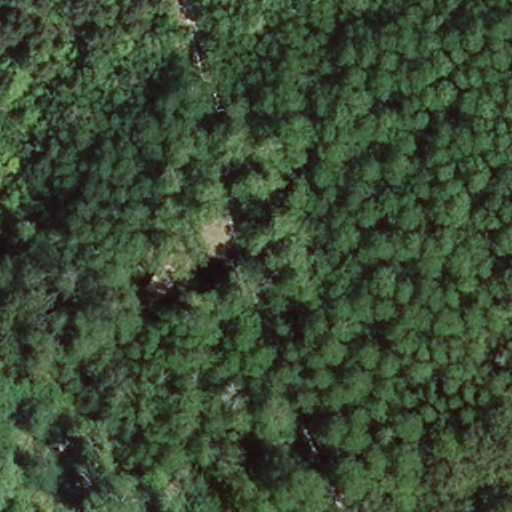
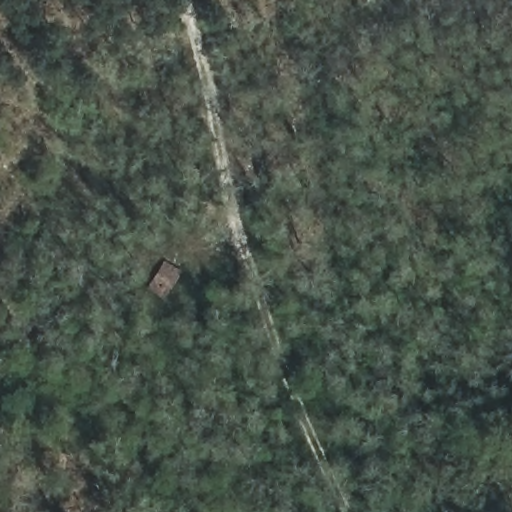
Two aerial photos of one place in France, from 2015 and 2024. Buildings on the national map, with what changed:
unchanged [(176,279),(168,294),(151,286),(159,270),(176,279)]

